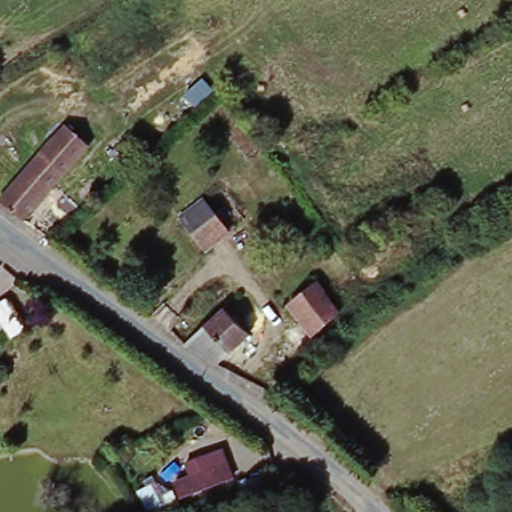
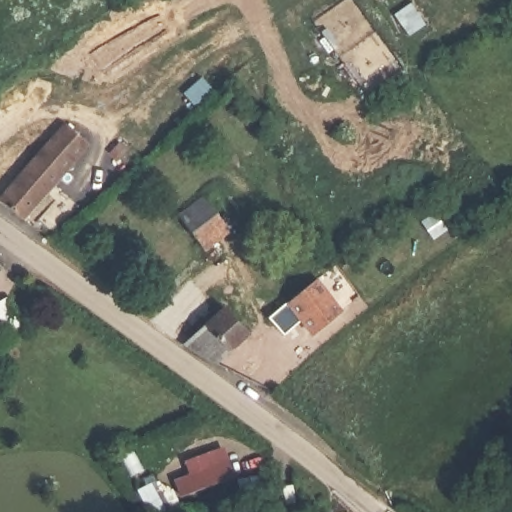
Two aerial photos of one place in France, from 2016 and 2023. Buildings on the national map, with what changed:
unchanged [(0,205),(0,201),(60,133),(74,118),(98,137),(85,153),(22,224),(0,205)]
unchanged [(229,231),(205,250),(205,249),(181,219),(207,201),(229,231)]
unchanged [(313,335),(290,309),(318,287),(341,313),(313,335)]
unchanged [(0,305),(5,301),(24,323),(0,339),(0,305)]
unchanged [(216,367),(189,347),(227,313),(249,335),(216,367)]
unchanged [(224,445),(235,476),(196,493),(184,461),(224,445)]

